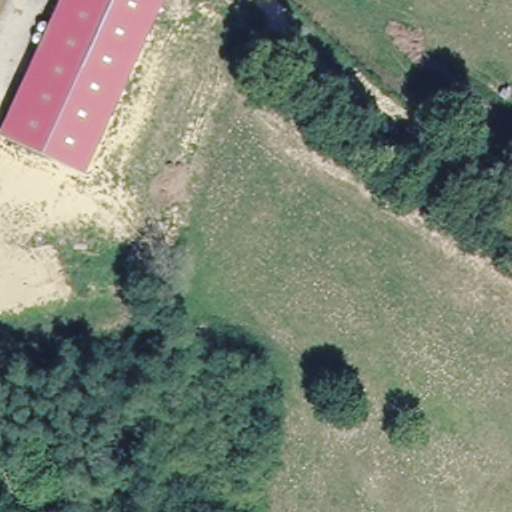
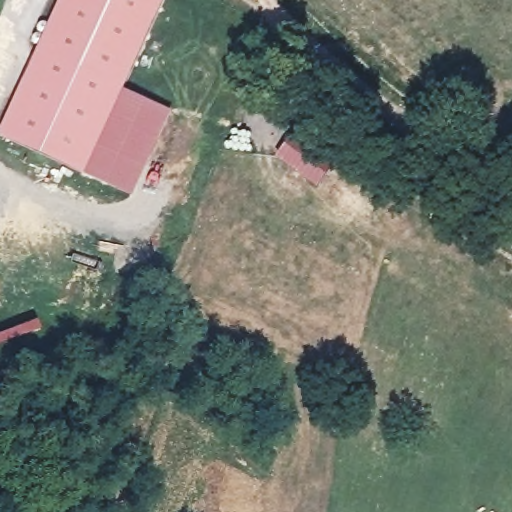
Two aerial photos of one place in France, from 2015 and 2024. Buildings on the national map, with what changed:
unchanged [(86,176),(0,137),(0,134),(60,0),(166,0),(86,176)]
new [(135,196),(88,172),(126,88),(174,111),(135,196)]

